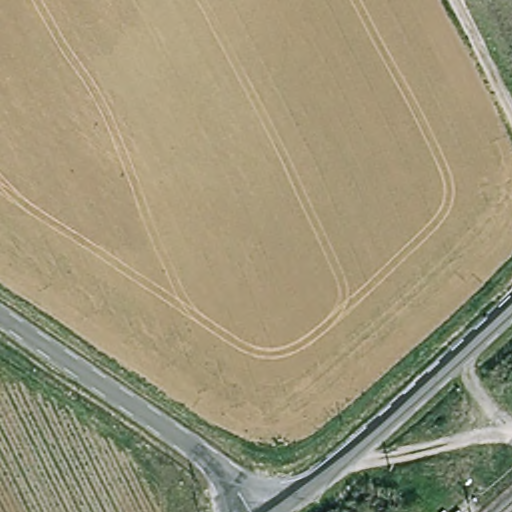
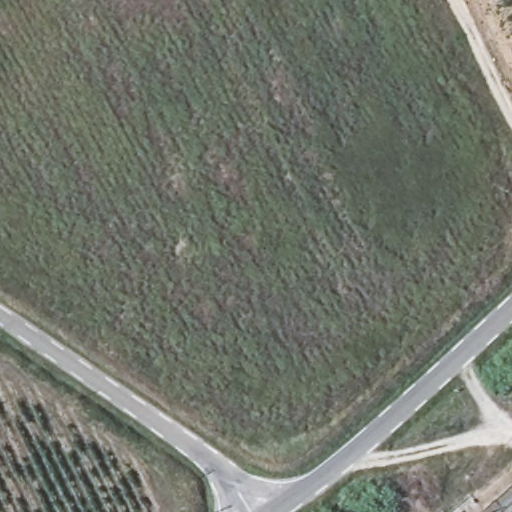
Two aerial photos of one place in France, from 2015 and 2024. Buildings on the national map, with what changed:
[]

